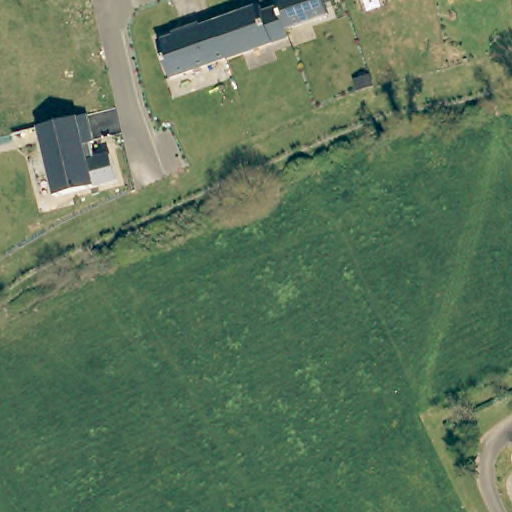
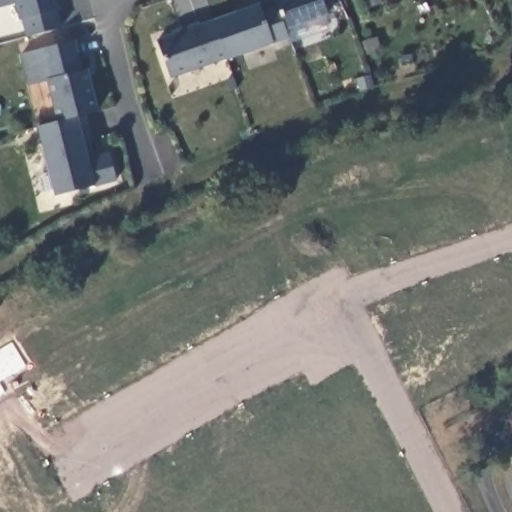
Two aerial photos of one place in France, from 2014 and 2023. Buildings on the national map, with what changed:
new [(57,11),(62,27),(27,36),(16,4),(0,8),(0,0),(59,0),(61,10),(57,11)]
unchanged [(285,29),(278,13),(276,7),(274,0),(322,0),(327,14),(285,29)]
unchanged [(259,5),(261,13),(276,7),(278,13),(285,29),(287,36),(287,38),(226,59),(222,49),(219,37),(213,21),(259,5)]
unchanged [(181,33),(181,30),(198,24),(199,26),(213,21),(219,37),(222,49),(226,59),(169,79),(156,41),(181,33)]
new [(80,70),(85,69),(95,108),(54,118),(45,80),(29,85),(21,54),(75,41),(80,70)]
unchanged [(84,115),(91,143),(89,143),(92,159),(108,154),(115,181),(55,197),(36,128),(84,115)]

